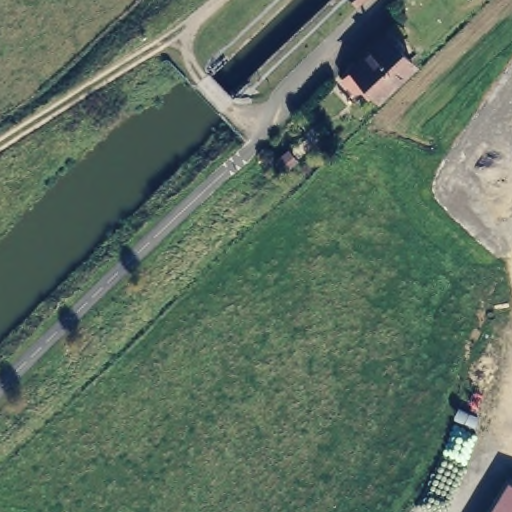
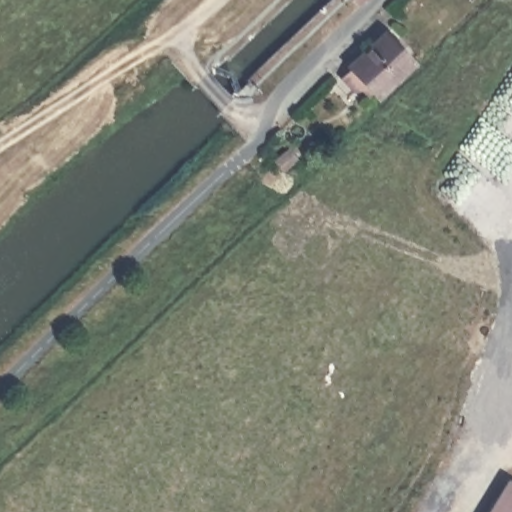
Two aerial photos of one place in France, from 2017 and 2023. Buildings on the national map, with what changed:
unchanged [(355,0),(361,0),(358,3),(355,0)]
unchanged [(344,73),(355,61),(390,27),(420,57),(383,91),(365,71),(353,82),(344,73)]
unchanged [(295,157),(283,169),(274,159),(287,149),(295,157)]
unchanged [(511,478),(512,479),(512,512),(491,512),(511,478)]

